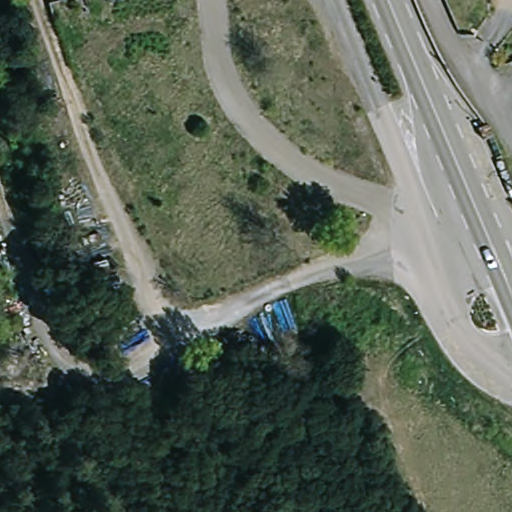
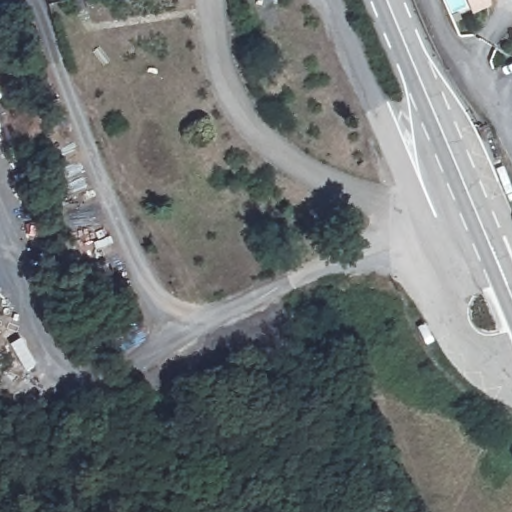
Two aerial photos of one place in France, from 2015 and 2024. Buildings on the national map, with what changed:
[]

